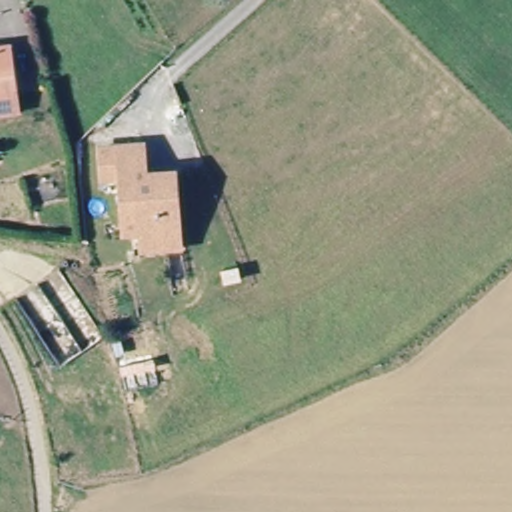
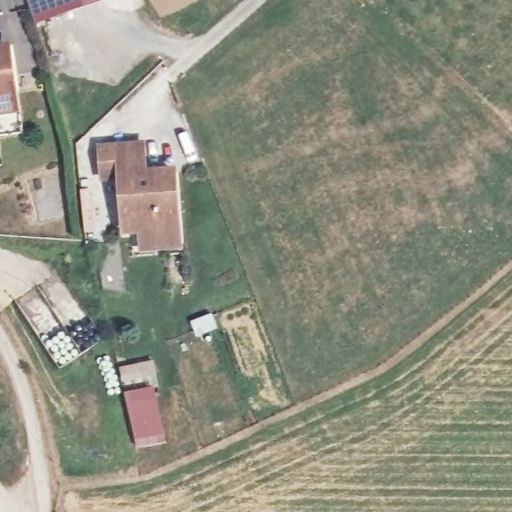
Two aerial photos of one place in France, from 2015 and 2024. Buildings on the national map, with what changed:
new [(36,25),(28,0),(109,0),(110,0),(36,25)]
unchanged [(0,125),(0,51),(7,50),(17,101),(20,122),(0,125)]
unchanged [(138,236),(122,236),(117,182),(99,184),(98,144),(146,141),(148,169),(177,167),(181,220),(181,252),(140,255),(138,236)]
new [(167,442),(137,448),(125,393),(155,387),(167,442)]

